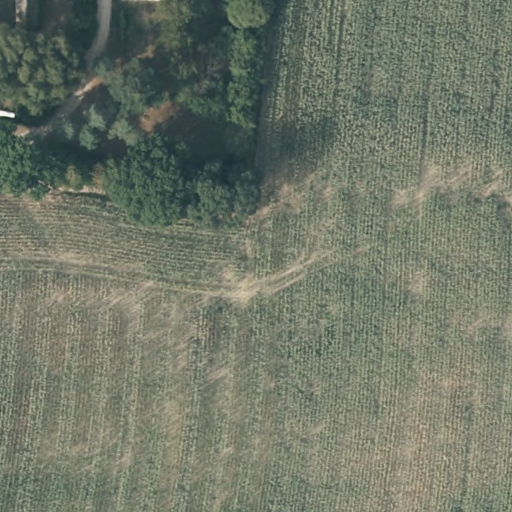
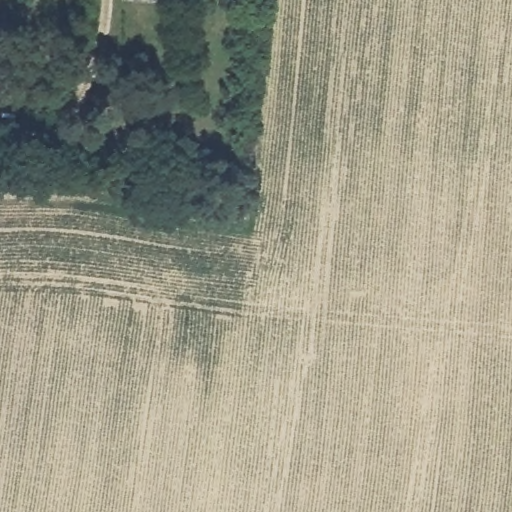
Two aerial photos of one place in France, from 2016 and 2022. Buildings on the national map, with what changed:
unchanged [(34,0),(39,0),(39,34),(21,34),(19,2),(34,0)]

